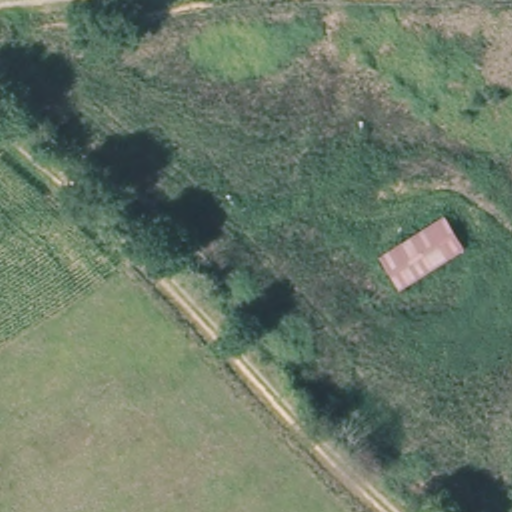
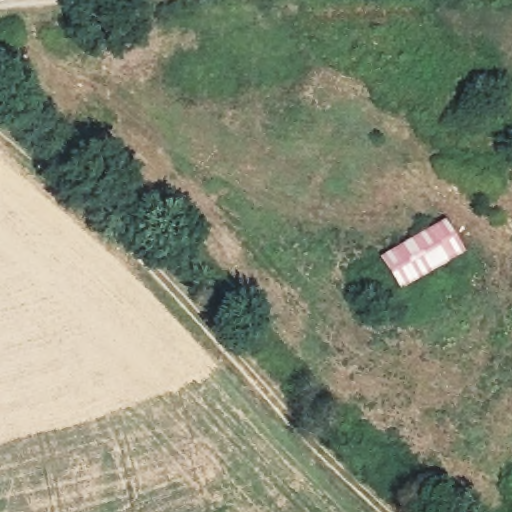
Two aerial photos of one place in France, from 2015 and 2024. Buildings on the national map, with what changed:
unchanged [(0,31),(5,31),(9,78),(0,79),(0,31)]
unchanged [(380,260),(381,259),(443,221),(463,252),(401,292),(380,260)]

